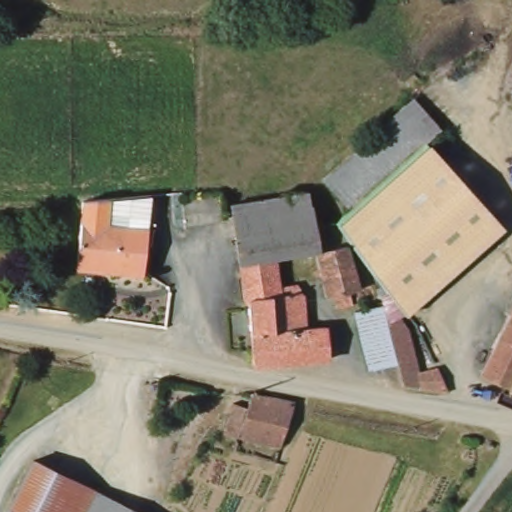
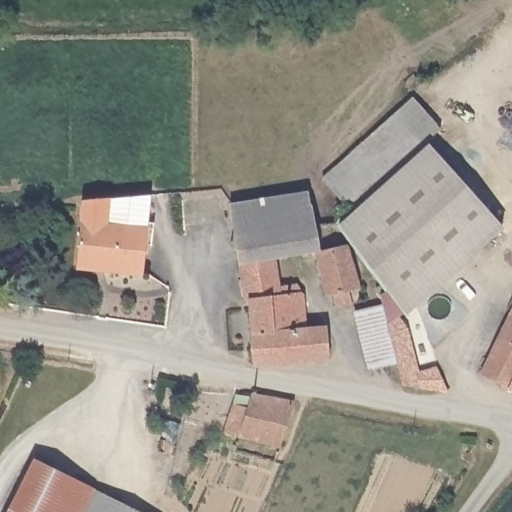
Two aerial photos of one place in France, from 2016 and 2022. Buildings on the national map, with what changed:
unchanged [(359,205),(353,210),(325,177),(417,96),(445,127),(424,147),(359,205)]
unchanged [(507,227),(408,313),(402,318),(411,330),(422,368),(439,366),(447,390),(404,387),(400,365),(406,363),(390,306),(384,308),(375,273),(336,224),(353,210),(359,205),(424,147),(507,227)]
unchanged [(152,195),(141,276),(105,270),(107,261),(77,257),(84,201),(152,195)]
unchanged [(254,201),(309,195),(315,225),(322,260),(278,267),(240,273),(234,203),(254,201)]
unchanged [(346,255),(366,301),(339,309),(337,298),(329,299),(322,260),(346,255)]
unchanged [(278,267),(282,300),(307,296),(312,326),(332,324),(339,360),(257,363),(250,301),(242,301),(240,273),(278,267)]
unchanged [(380,370),(365,313),(390,306),(406,363),(380,370)]
unchanged [(512,316),(512,388),(482,375),(512,316)]
unchanged [(298,402),(285,448),(242,437),(229,435),(238,397),(251,399),(252,394),(298,402)]
unchanged [(37,463),(101,493),(91,512),(13,512),(37,463)]
unchanged [(101,493),(139,512),(91,512),(101,493)]

